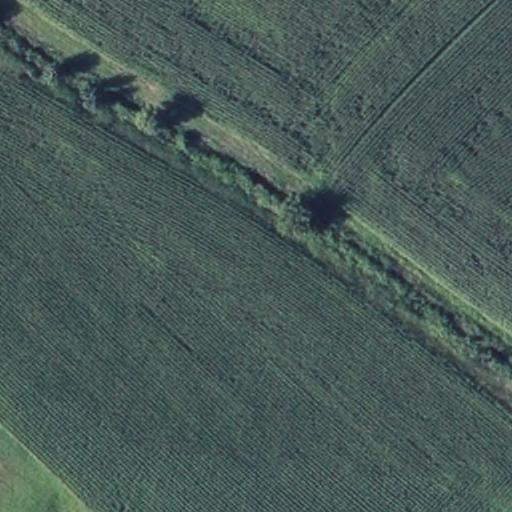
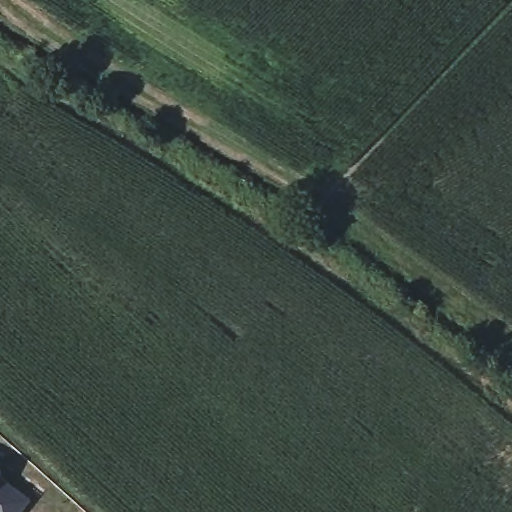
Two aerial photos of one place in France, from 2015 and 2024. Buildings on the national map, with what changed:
new [(0,512),(0,478),(26,498),(16,512),(0,512)]

